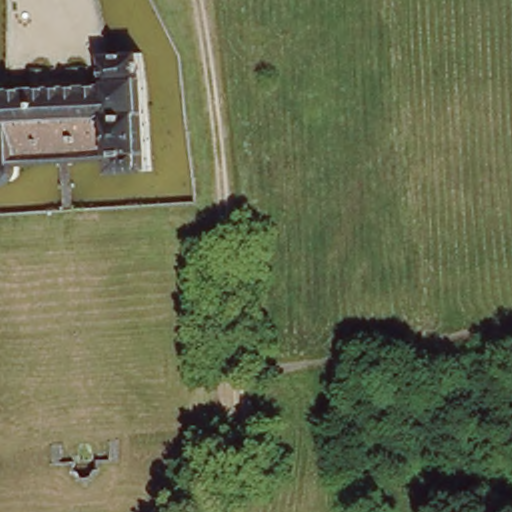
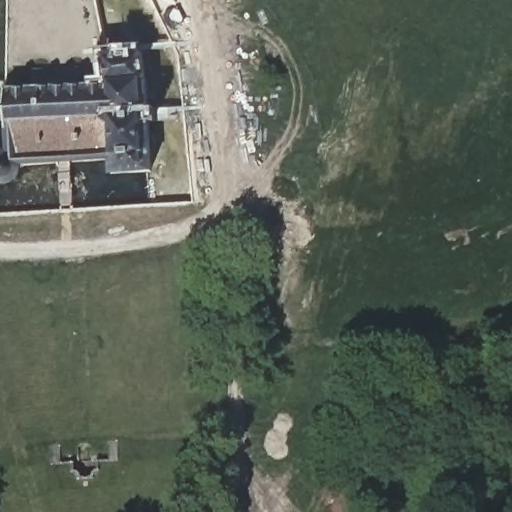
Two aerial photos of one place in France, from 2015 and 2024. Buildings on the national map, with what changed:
unchanged [(140,47),(143,65),(144,69),(149,164),(139,165),(112,166),(111,149),(68,151),(56,151),(17,154),(19,161),(18,169),(14,174),(8,177),(0,177),(0,149),(5,147),(3,85),(6,85),(106,80),(105,47),(140,47)]

